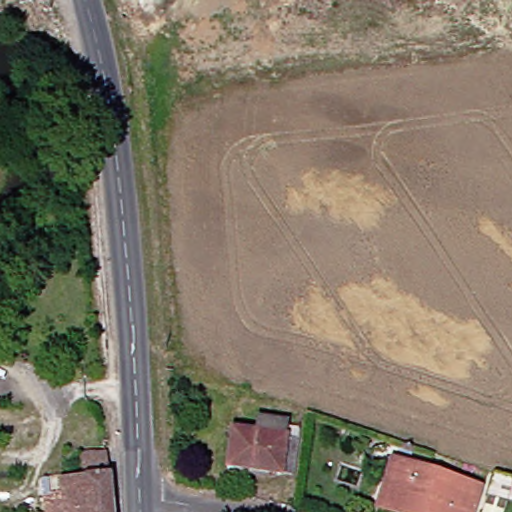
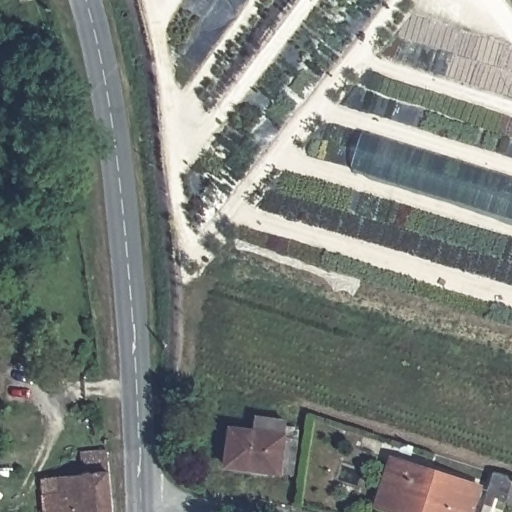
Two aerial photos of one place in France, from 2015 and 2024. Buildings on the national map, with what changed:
unchanged [(8,0),(17,0),(9,2),(8,0)]
unchanged [(287,437),(283,480),(233,476),(235,435),(287,437)]
unchanged [(54,478),(75,475),(73,454),(100,452),(105,512),(57,512),(54,478)]
unchanged [(469,490),(463,512),(377,512),(369,510),(382,462),(469,490)]
unchanged [(489,497),(489,495),(494,475),(503,477),(512,480),(512,506),(505,503),(502,512),(484,512),(489,497)]

